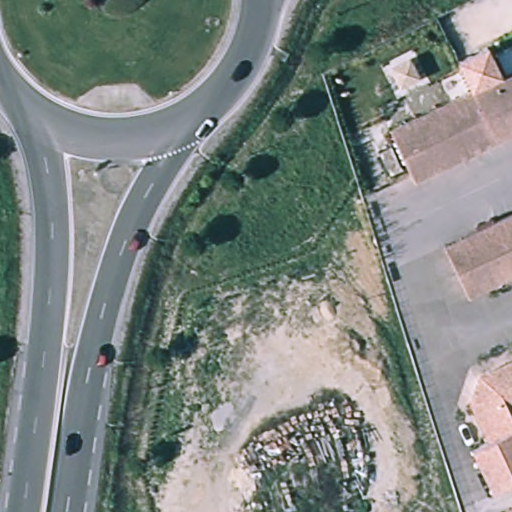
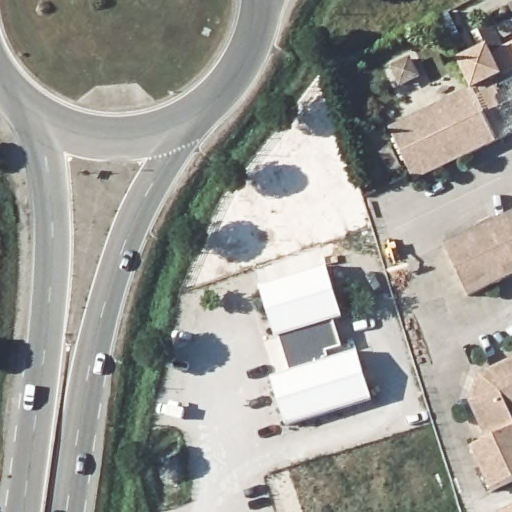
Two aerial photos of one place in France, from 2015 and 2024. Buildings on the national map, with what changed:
unchanged [(481,86),(512,71),(512,135),(503,139),(415,181),(390,128),(481,86)]
unchanged [(441,245),(512,211),(512,274),(465,297),(441,245)]
new [(358,351),(373,402),(288,427),(273,380),(291,374),(281,338),(277,339),(261,289),(328,267),(344,319),(335,321),(342,348),(327,353),(330,361),(358,351)]
unchanged [(470,447),(487,440),(469,401),(479,374),(512,358),(512,480),(491,490),(470,447)]
unchanged [(512,503),(512,512),(493,512),(512,503)]

